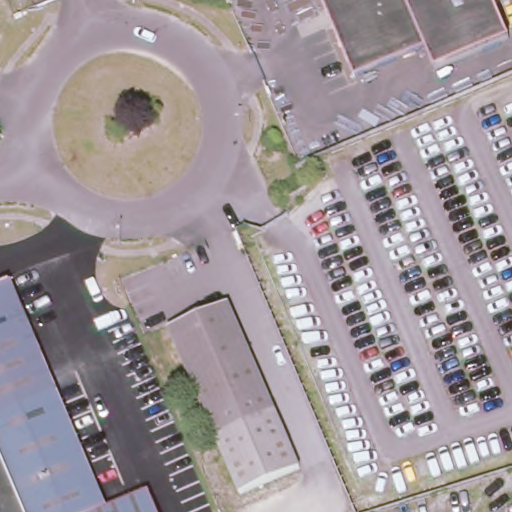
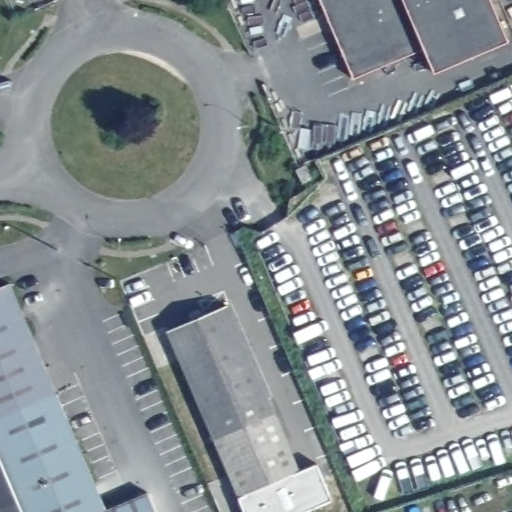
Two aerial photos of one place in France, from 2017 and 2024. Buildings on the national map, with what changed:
unchanged [(508,45),(431,76),(421,53),(352,80),(319,0),(489,0),(508,45)]
unchanged [(62,396),(0,421),(0,290),(17,283),(62,396)]
unchanged [(234,306),(278,418),(215,443),(172,330),(234,306)]
unchanged [(107,512),(24,512),(0,449),(0,421),(62,396),(107,512)]
unchanged [(299,472),(235,494),(215,443),(278,418),(299,472)]
unchanged [(0,512),(0,449),(24,512),(0,512)]
new [(244,512),(235,494),(299,472),(298,471),(317,463),(330,499),(301,512),(244,512)]
new [(118,512),(117,510),(113,512),(107,512),(106,510),(147,492),(155,512),(118,512)]
unchanged [(118,512),(113,512),(117,510),(118,512)]

